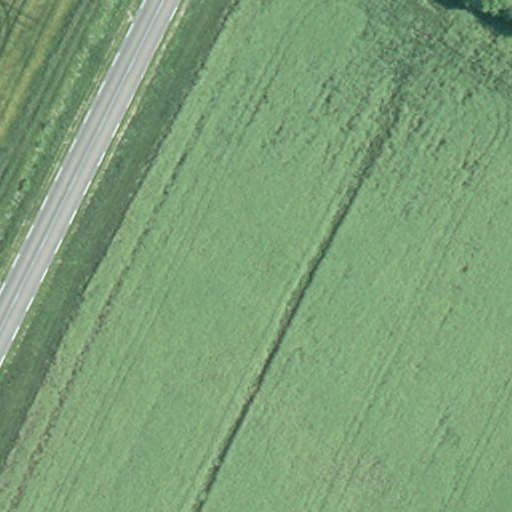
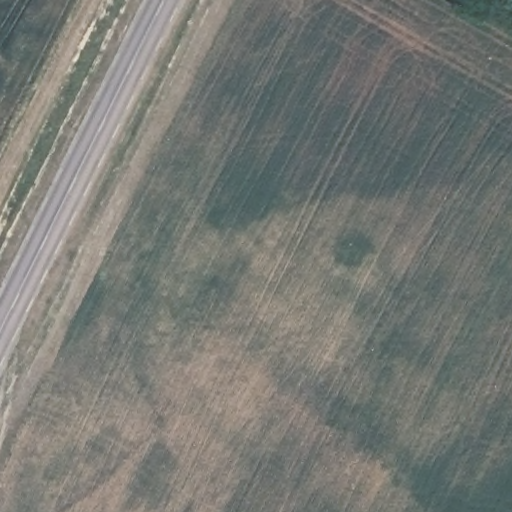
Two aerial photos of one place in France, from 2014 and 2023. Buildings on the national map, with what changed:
[]

